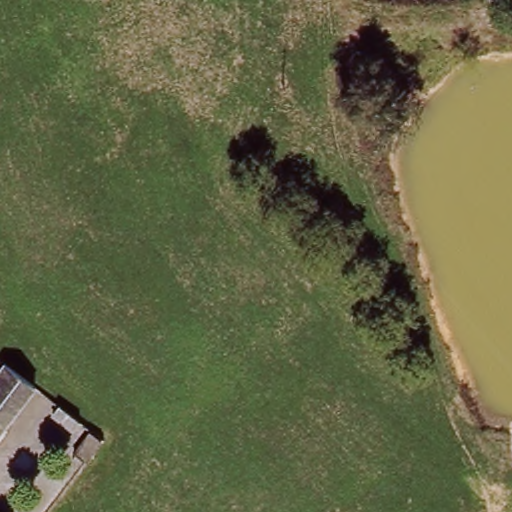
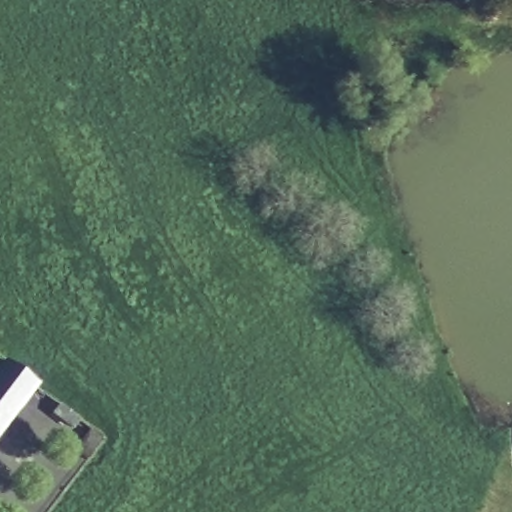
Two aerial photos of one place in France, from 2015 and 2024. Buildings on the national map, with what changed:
unchanged [(38,383),(0,432),(0,369),(8,358),(38,383)]
unchanged [(71,430),(51,414),(56,407),(76,423),(71,430)]
unchanged [(72,453),(87,432),(102,443),(86,464),(72,453)]

